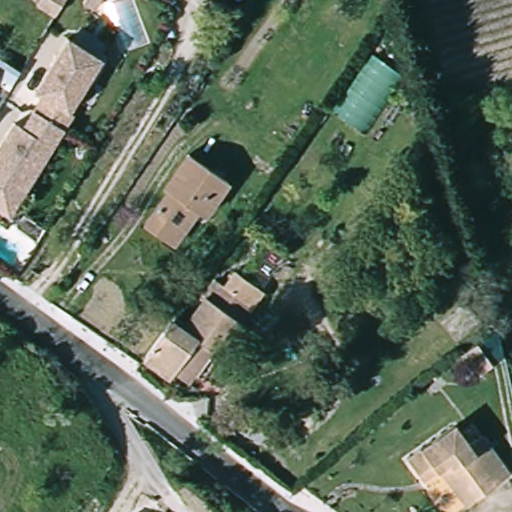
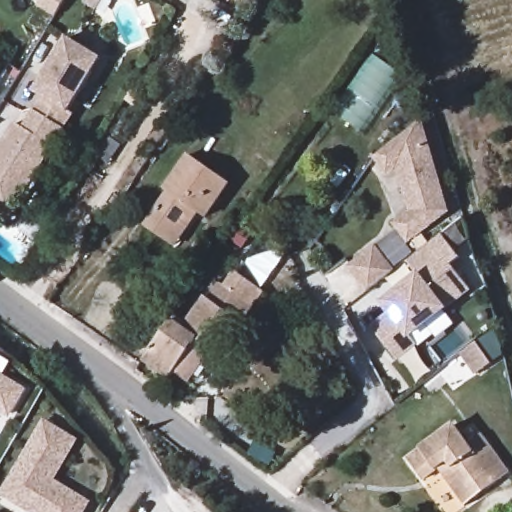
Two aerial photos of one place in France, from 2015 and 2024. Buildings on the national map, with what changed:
unchanged [(51,0),(68,0),(72,3),(61,22),(43,12),(51,0)]
unchanged [(10,216),(0,210),(0,143),(13,121),(22,126),(39,96),(33,91),(68,36),(102,58),(10,216)]
unchanged [(398,83),(365,132),(336,112),(370,64),(398,83)]
unchanged [(0,103),(0,89),(6,94),(0,103)]
new [(424,119),(450,214),(408,245),(392,224),(408,210),(396,170),(388,176),(374,156),(424,119)]
unchanged [(211,232),(193,221),(172,255),(147,238),(174,200),(170,196),(190,168),(233,196),(211,232)]
new [(441,234),(461,257),(451,264),(472,290),(449,309),(414,336),(420,345),(399,361),(370,326),(387,312),(379,302),(347,266),(375,244),(395,270),(441,234)]
unchanged [(187,390),(173,381),(169,387),(142,368),(143,367),(160,342),(168,331),(172,325),(187,335),(206,304),(214,290),(224,297),(233,283),(257,300),(248,313),(238,330),(239,331),(218,365),(208,358),(200,370),(187,390)]
unchanged [(475,345),(494,365),(480,376),(462,357),(475,345)]
new [(11,417),(0,412),(0,373),(28,390),(11,417)]
new [(80,440),(56,480),(93,501),(87,512),(28,512),(0,494),(0,491),(44,417),(80,440)]
unchanged [(507,481),(475,506),(446,472),(424,490),(409,470),(452,435),(468,452),(477,445),(507,481)]

